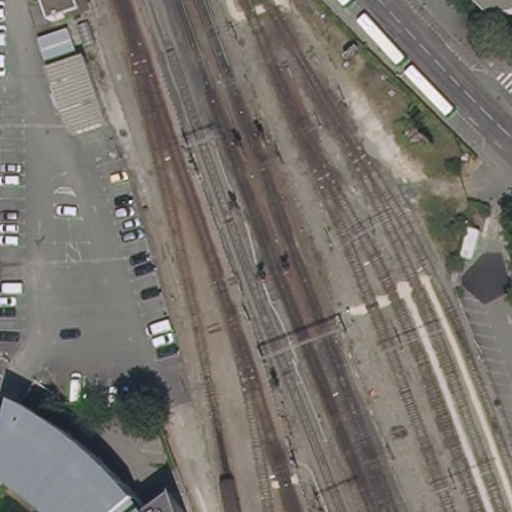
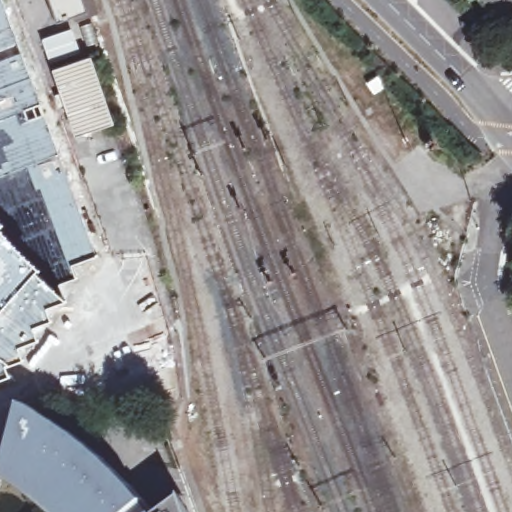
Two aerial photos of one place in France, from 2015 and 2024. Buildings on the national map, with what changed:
new [(0,50),(0,0),(1,0),(17,44),(0,50)]
unchanged [(87,10),(56,21),(48,0),(84,0),(87,10)]
unchanged [(485,0),(512,0),(512,15),(502,16),(485,0)]
new [(72,29),(80,52),(51,62),(43,39),(72,29)]
new [(39,103),(17,111),(0,118),(0,60),(20,51),(39,103)]
unchanged [(90,56),(112,122),(76,134),(53,69),(90,56)]
new [(21,119),(42,112),(58,154),(26,167),(0,176),(0,118),(17,111),(21,119)]
new [(58,154),(94,251),(66,262),(45,208),(26,167),(58,154)]
new [(61,296),(45,304),(50,316),(36,339),(26,353),(0,371),(0,221),(12,237),(61,296)]
unchanged [(35,490),(17,479),(15,478),(16,472),(35,403),(62,417),(96,440),(122,463),(142,481),(156,496),(168,512),(63,512),(52,502),(35,490)]
unchanged [(201,512),(173,512),(194,495),(201,512)]

